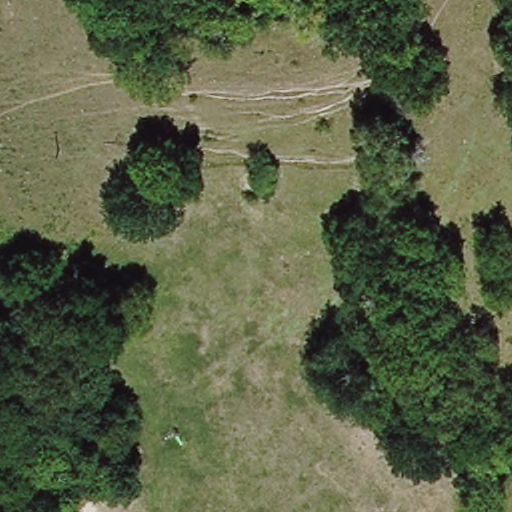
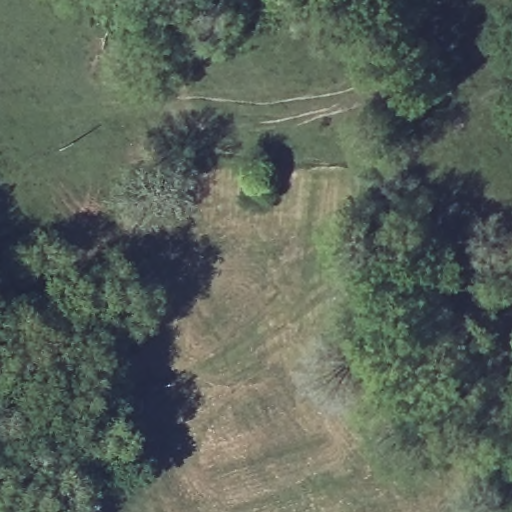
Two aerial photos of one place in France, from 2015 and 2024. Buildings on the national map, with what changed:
[]

